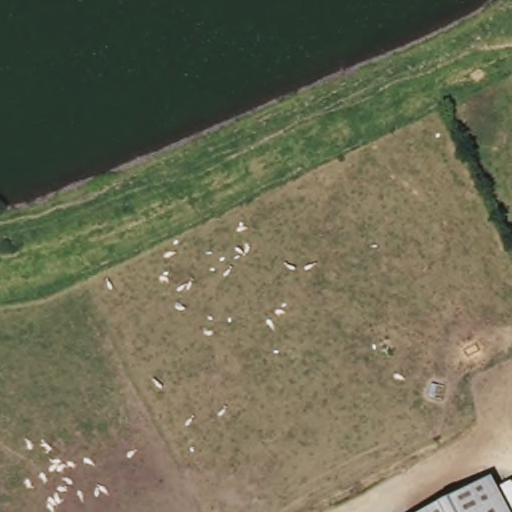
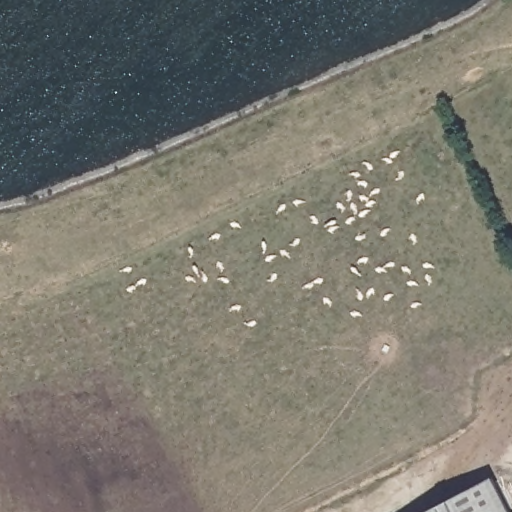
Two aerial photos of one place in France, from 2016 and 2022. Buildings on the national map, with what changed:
unchanged [(430,512),(492,480),(509,512),(430,512)]

